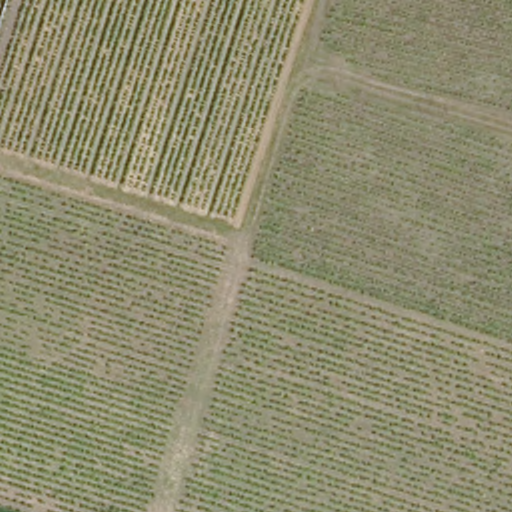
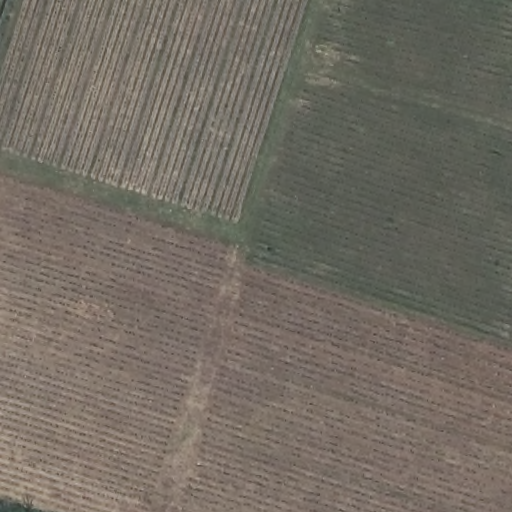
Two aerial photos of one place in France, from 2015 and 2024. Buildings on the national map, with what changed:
[]

